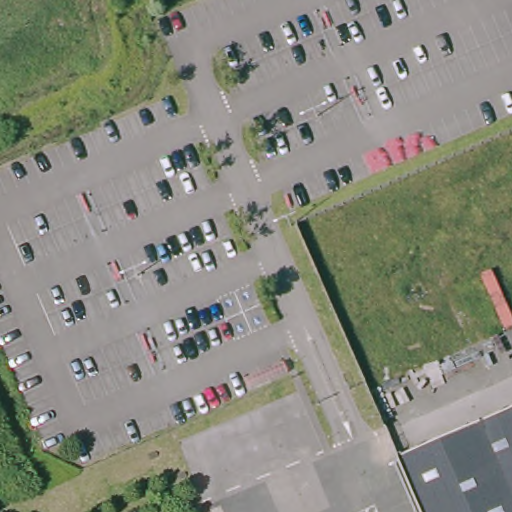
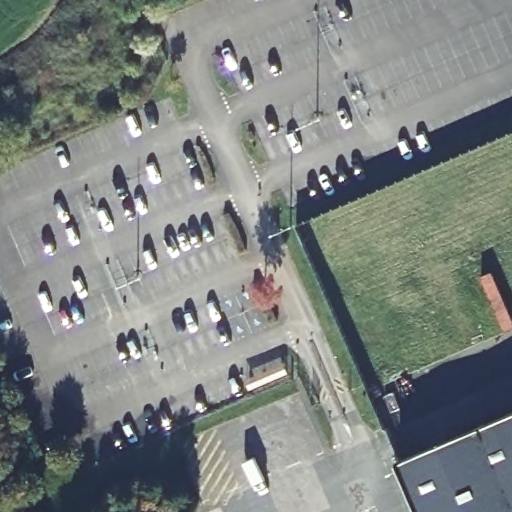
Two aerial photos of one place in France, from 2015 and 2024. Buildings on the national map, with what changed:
unchanged [(512,409),(512,512),(423,512),(400,457),(512,409)]

